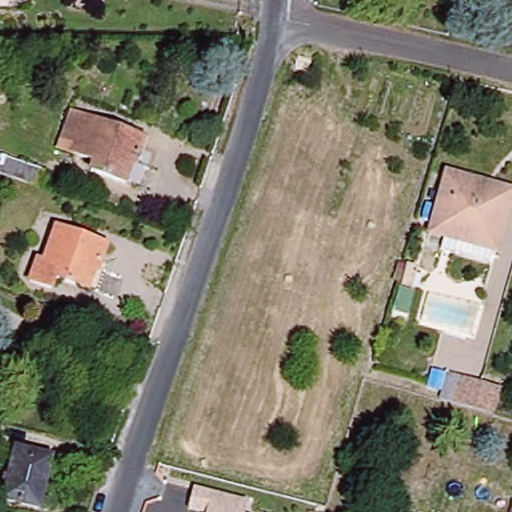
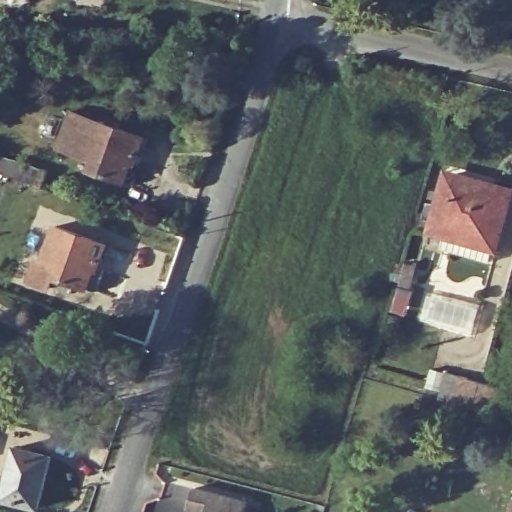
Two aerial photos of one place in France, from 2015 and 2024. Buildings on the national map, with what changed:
unchanged [(95,161),(58,148),(71,110),(144,136),(136,158),(132,157),(123,182),(91,171),(95,161)]
unchanged [(46,186),(17,175),(22,161),(52,172),(46,186)]
unchanged [(488,254),(439,239),(443,228),(430,224),(448,165),(512,185),(512,192),(496,242),(493,243),(488,254)]
unchanged [(57,290),(36,282),(44,261),(49,263),(61,228),(111,246),(105,263),(102,262),(92,289),(61,278),(57,290)]
unchanged [(419,311),(428,282),(480,297),(470,327),(419,311)]
unchanged [(489,414),(468,408),(449,402),(457,377),(476,382),(496,388),(489,414)]
unchanged [(4,497),(18,446),(52,456),(39,506),(4,497)]
unchanged [(195,489),(248,503),(246,512),(202,512),(189,508),(195,489)]

